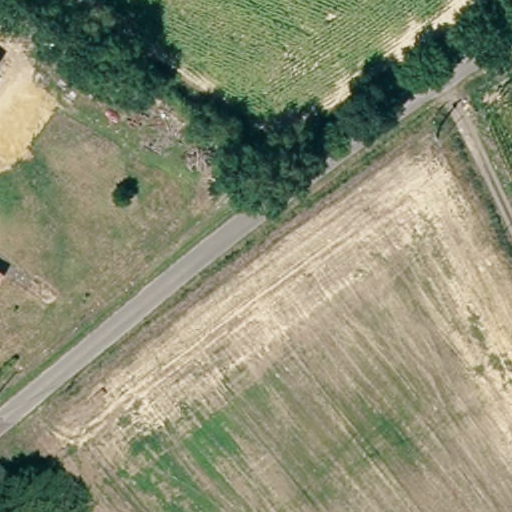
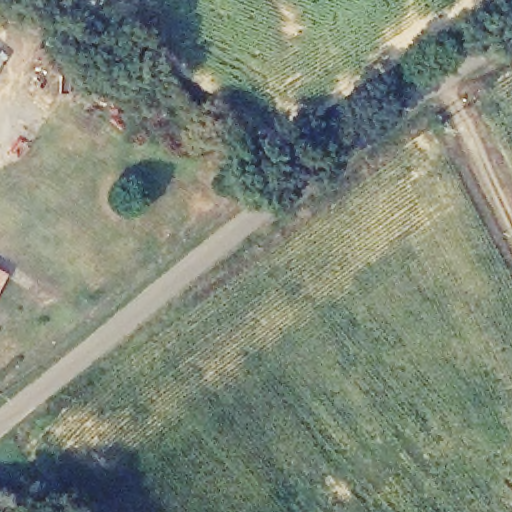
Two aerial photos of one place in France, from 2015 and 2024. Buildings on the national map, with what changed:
unchanged [(0,293),(0,284),(4,286),(0,293)]

